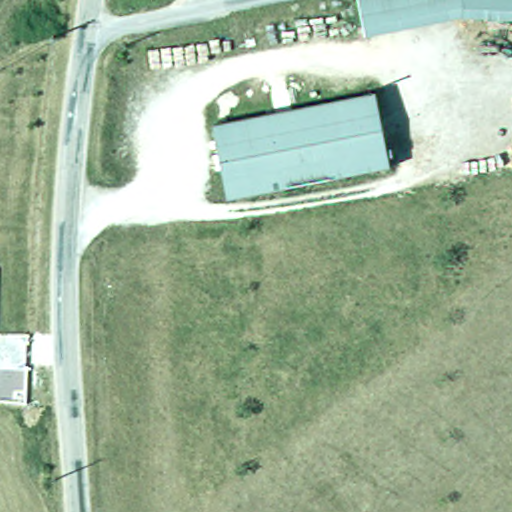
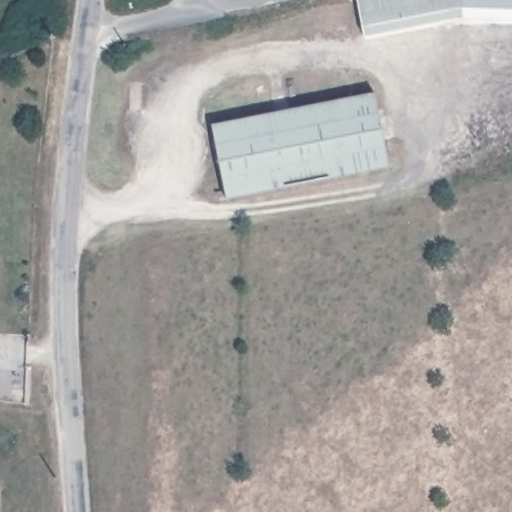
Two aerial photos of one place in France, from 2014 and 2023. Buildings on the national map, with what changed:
unchanged [(354,19),(348,0),(512,0),(512,3),(445,2),(354,19)]
unchanged [(390,162),(225,198),(208,122),(375,86),(390,162)]

